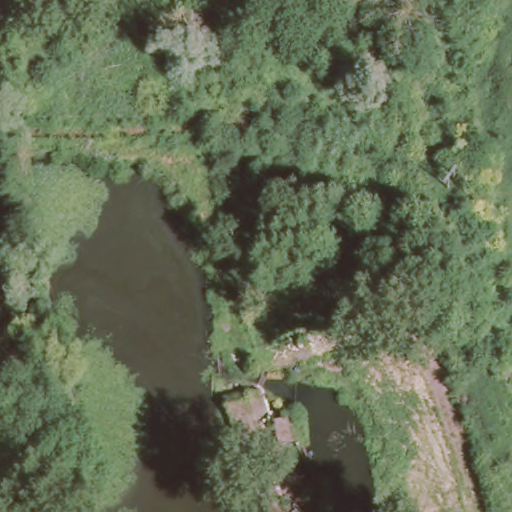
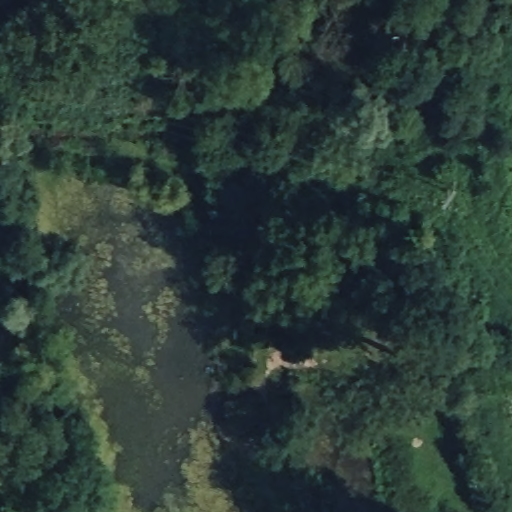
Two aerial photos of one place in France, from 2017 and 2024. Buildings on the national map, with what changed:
unchanged [(228,392),(245,389),(248,406),(232,410),(228,392)]

